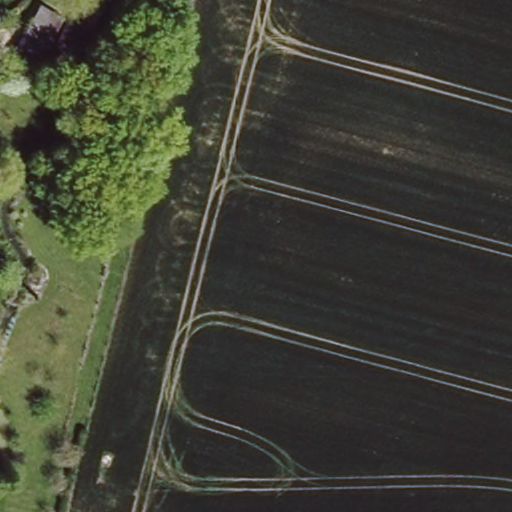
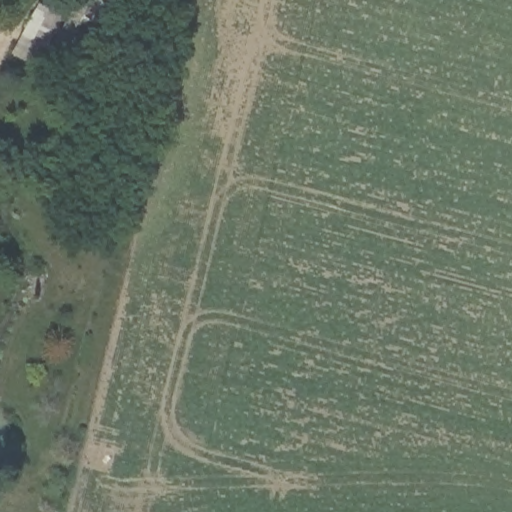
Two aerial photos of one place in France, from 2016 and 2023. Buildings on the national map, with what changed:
unchanged [(68,20),(42,72),(12,55),(42,2),(68,20)]

